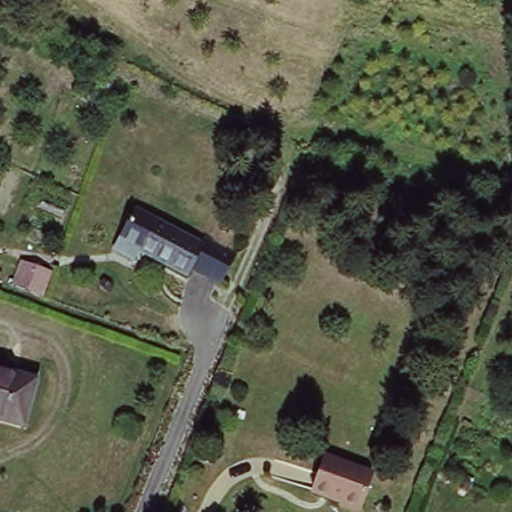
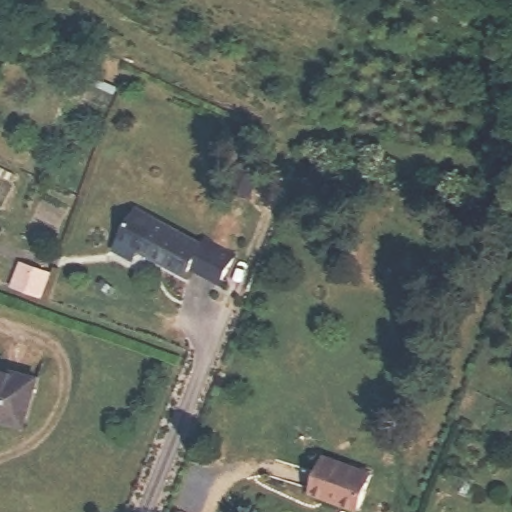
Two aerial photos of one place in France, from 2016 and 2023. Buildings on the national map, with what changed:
unchanged [(205,237),(208,229),(241,241),(230,272),(200,260),(195,270),(139,251),(135,262),(115,255),(131,211),(205,237)]
unchanged [(40,299),(7,286),(16,259),(50,271),(40,299)]
unchanged [(22,427),(0,420),(0,369),(36,380),(22,427)]
unchanged [(376,472),(363,502),(317,483),(328,455),(376,472)]

